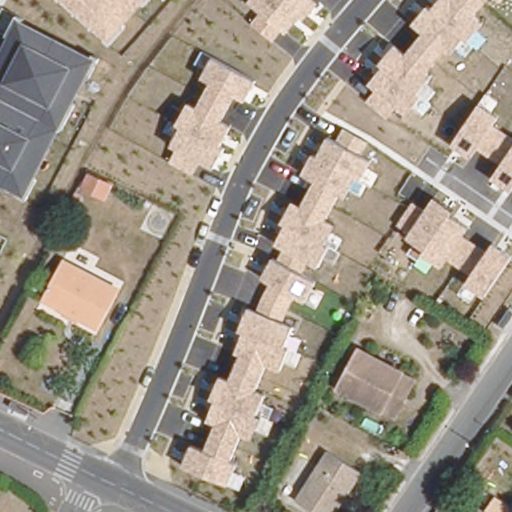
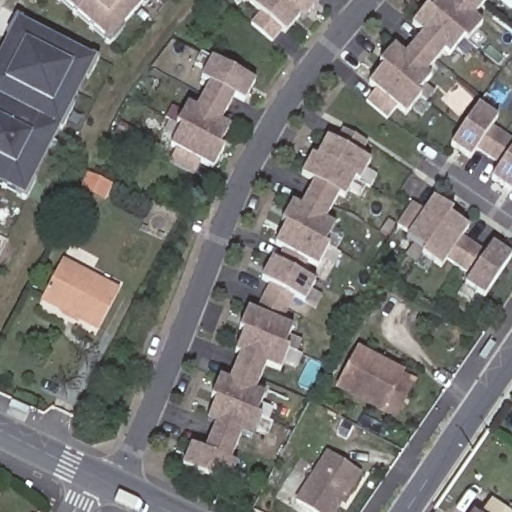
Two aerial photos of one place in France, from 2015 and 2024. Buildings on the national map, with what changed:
unchanged [(65,0),(151,0),(112,42),(65,0)]
unchanged [(249,1),(250,0),(316,0),(318,1),(304,19),(300,16),(286,33),(282,29),(272,40),(251,23),(265,14),(249,1)]
unchanged [(482,24),(468,41),(463,38),(449,55),(444,51),(427,73),(431,77),(417,94),(421,97),(407,114),(397,107),(388,118),(367,101),(378,89),(369,84),(385,66),(380,64),(394,45),(405,54),(423,34),(413,24),(429,5),(433,9),(440,0),(487,0),(473,15),(482,24)]
unchanged [(500,0),(503,0),(502,1),(500,0)]
unchanged [(0,184),(0,52),(17,18),(100,59),(28,197),(0,184)]
unchanged [(169,163),(177,149),(170,146),(180,127),(176,125),(188,102),(197,106),(209,83),(202,78),(212,57),(256,79),(245,101),(234,96),(221,121),(231,126),(221,145),(225,148),(213,169),(201,163),(193,175),(169,163)]
unchanged [(492,178),(500,165),(476,150),(470,158),(452,144),(478,104),(498,118),(493,125),(512,139),(512,190),(492,178)]
unchanged [(362,156),(371,161),(359,182),(355,179),(345,197),(339,194),(326,219),(335,224),(325,244),(329,247),(317,268),(309,264),(303,275),(316,283),(305,303),(297,299),(287,309),(286,324),(294,327),(284,347),(290,349),(280,372),(267,366),(257,390),(266,394),(257,414),(262,417),(252,439),(241,436),(231,461),(237,464),(228,484),(183,466),(191,445),(205,451),(215,424),(207,421),(217,400),(211,398),(220,376),(229,379),(241,354),(235,352),(243,332),(240,330),(248,307),(257,310),(262,296),(272,284),(261,278),(272,258),(279,262),(285,249),(276,244),(286,224),(282,222),(293,200),(301,204),(314,182),(302,174),(313,154),(318,156),(328,137),(337,142),(343,129),(367,143),(362,156)]
unchanged [(95,194),(86,189),(95,170),(105,175),(95,194)]
unchanged [(512,255),(484,297),(466,284),(472,274),(447,259),(440,268),(422,253),(424,250),(406,238),(409,234),(397,224),(412,202),(424,210),(433,198),(453,211),(451,215),(468,228),(463,236),(487,252),(493,243),(512,255)]
unchanged [(60,324),(64,315),(41,303),(58,268),(114,294),(95,330),(79,322),(74,330),(60,324)]
unchanged [(377,404),(333,381),(353,344),(409,374),(396,400),(390,412),(377,404)]
unchanged [(363,475),(338,512),(306,512),(292,502),(326,451),(363,475)]
unchanged [(481,512),(479,512),(479,511),(481,512)]

